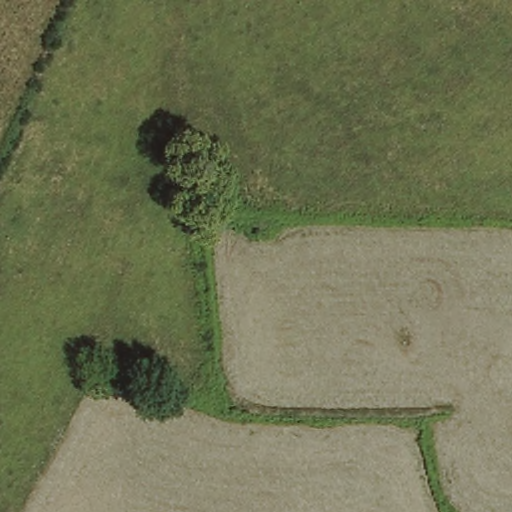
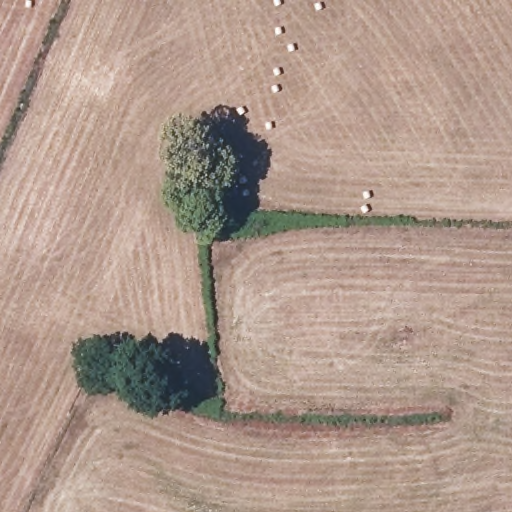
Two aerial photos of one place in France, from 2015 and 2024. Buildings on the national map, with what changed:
unchanged [(217,200),(198,200),(199,179),(217,179),(217,200)]

